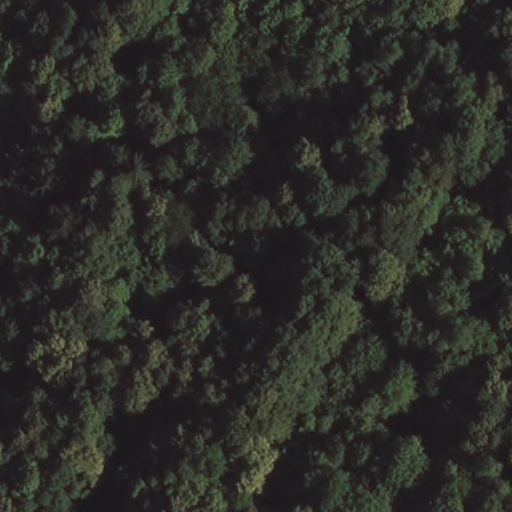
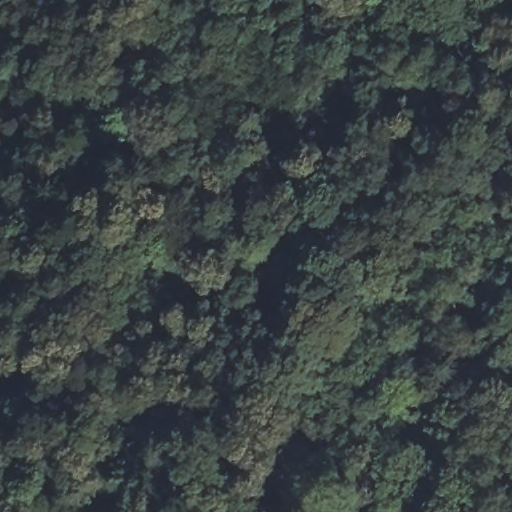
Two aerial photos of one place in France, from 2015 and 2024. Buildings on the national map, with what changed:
unchanged [(298,510),(301,512),(296,512),(298,510)]

